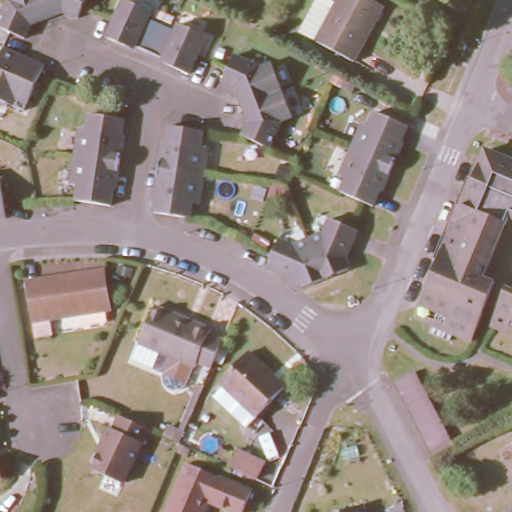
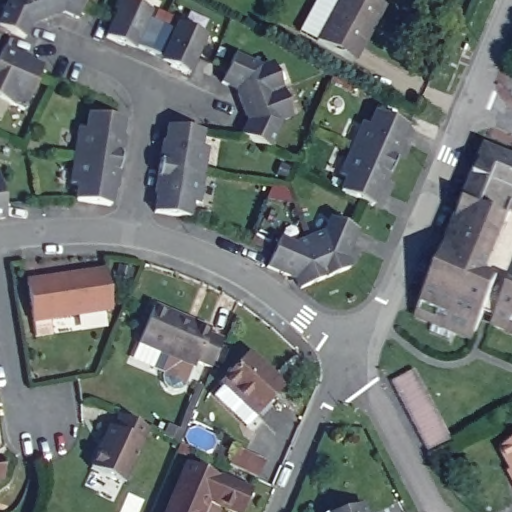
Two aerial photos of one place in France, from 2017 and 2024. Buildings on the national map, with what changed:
unchanged [(3,0),(90,0),(83,23),(62,20),(55,32),(28,26),(20,52),(43,59),(25,106),(5,100),(3,110),(0,108),(0,36),(0,8),(3,0)]
unchanged [(166,0),(213,19),(193,74),(160,65),(163,55),(140,46),(135,55),(104,40),(121,0),(166,0)]
unchanged [(352,60),(315,40),(336,0),(377,0),(383,3),(352,60)]
unchanged [(239,44),(270,53),(289,107),(271,146),(240,136),(247,119),(238,93),(220,87),(239,44)]
unchanged [(368,102),(405,111),(370,205),(336,192),(368,102)]
unchanged [(84,107),(121,106),(110,203),(75,201),(84,107)]
unchanged [(166,115),(215,120),(204,212),(152,209),(166,115)]
unchanged [(508,321),(482,310),(471,337),(452,330),(449,337),(430,329),(433,321),(415,313),(483,147),(512,159),(512,157),(512,330),(505,327),(508,321)]
unchanged [(5,217),(0,218),(0,177),(5,217)]
unchanged [(363,215),(347,261),(348,267),(300,284),(296,272),(267,258),(277,236),(290,243),(327,223),(334,209),(363,215)]
unchanged [(104,271),(110,310),(33,322),(27,282),(104,271)]
unchanged [(192,359),(190,363),(134,341),(150,303),(205,326),(203,331),(217,337),(205,365),(192,359)]
unchanged [(217,382),(248,348),(287,383),(255,418),(217,382)]
unchanged [(392,380),(413,367),(453,442),(430,453),(392,380)]
unchanged [(123,485),(85,467),(105,427),(113,430),(118,417),(147,431),(123,485)]
unchanged [(500,446),(512,440),(512,478),(507,468),(510,467),(500,446)]
unchanged [(187,460),(252,487),(242,510),(209,496),(202,512),(165,512),(187,460)]
unchanged [(362,501),(365,512),(326,512),(362,501)]

